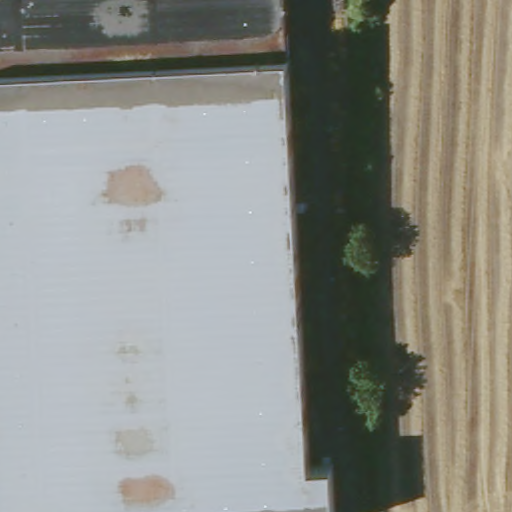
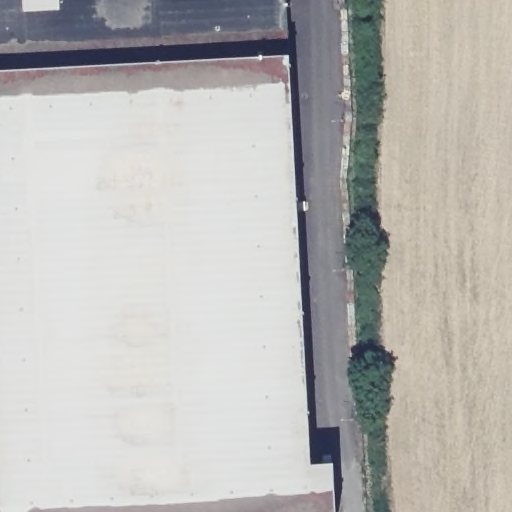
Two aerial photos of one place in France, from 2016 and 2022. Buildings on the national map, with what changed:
unchanged [(311,465),(332,464),(334,512),(0,512),(0,0),(286,0),(311,465)]

